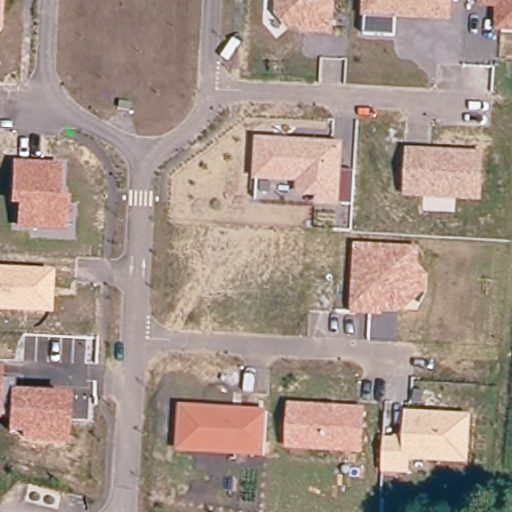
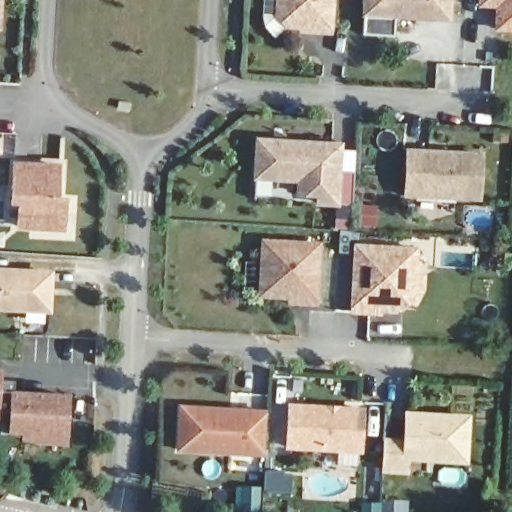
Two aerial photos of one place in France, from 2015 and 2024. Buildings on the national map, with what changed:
unchanged [(3,29),(0,29),(0,0),(4,0),(3,29)]
unchanged [(293,34),(273,10),(274,0),(335,0),(332,35),(293,34)]
unchanged [(363,0),(452,0),(451,21),(395,18),(394,37),(361,34),(363,0)]
unchanged [(512,32),(495,31),(495,6),(476,6),(477,0),(512,0),(512,32)]
unchanged [(255,134),(343,140),(342,170),(353,171),(352,205),(314,203),(315,196),(295,194),(295,181),(252,179),(255,134)]
unchanged [(406,145),(485,151),(482,200),(403,198),(406,145)]
unchanged [(62,164),(59,197),(68,198),(66,231),(16,228),(17,205),(11,204),(14,160),(62,164)]
new [(287,304),(288,299),(257,297),(261,237),(323,241),(318,307),(287,304)]
unchanged [(354,241),(419,245),(417,262),(425,271),(424,291),(404,310),(381,309),(381,315),(350,312),(354,241)]
unchanged [(54,269),(52,314),(0,312),(0,266),(54,269)]
unchanged [(23,435),(7,434),(7,421),(0,421),(0,367),(1,367),(1,379),(14,380),(14,390),(68,394),(65,446),(23,443),(23,435)]
unchanged [(179,402),(266,409),(263,457),(176,451),(179,402)]
unchanged [(288,402),(366,407),(362,455),(285,450),(288,402)]
unchanged [(380,472),(382,435),(404,437),(405,409),(472,414),(469,464),(410,460),(409,474),(380,472)]

